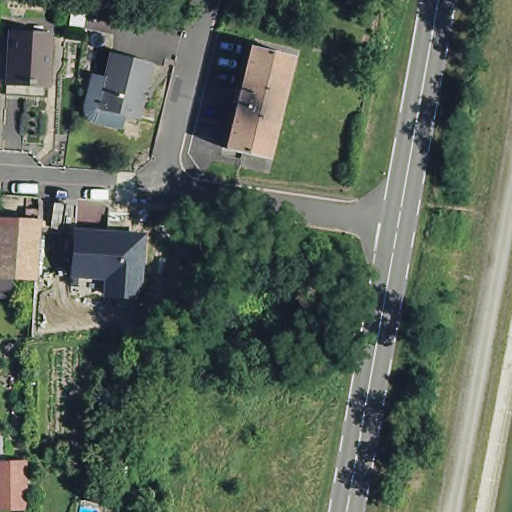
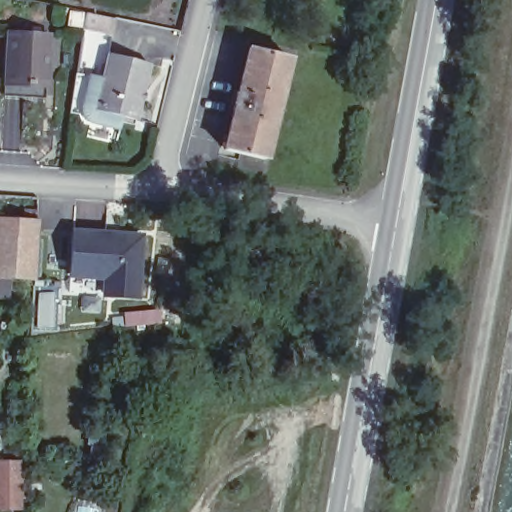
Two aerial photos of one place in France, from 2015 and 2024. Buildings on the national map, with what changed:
unchanged [(8,90),(8,75),(8,27),(48,28),(48,75),(48,90),(8,90)]
unchanged [(268,163),(230,153),(241,107),(240,106),(243,92),(245,92),(256,52),(293,61),(268,163)]
unchanged [(80,121),(76,119),(73,115),(72,112),(71,107),(78,76),(90,79),(94,53),(136,62),(125,119),(110,115),(108,127),(80,121)]
unchanged [(26,210),(38,210),(38,220),(37,240),(35,279),(0,277),(0,218),(26,220),(26,210)]
unchanged [(145,300),(106,301),(103,281),(71,280),(72,232),(146,236),(145,300)]
unchanged [(0,462),(15,462),(16,506),(0,507),(0,462)]

